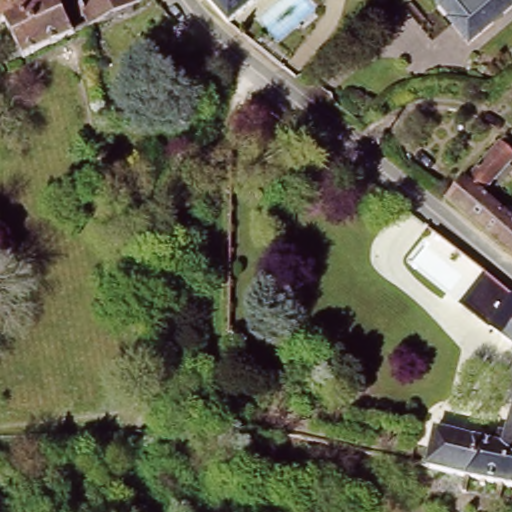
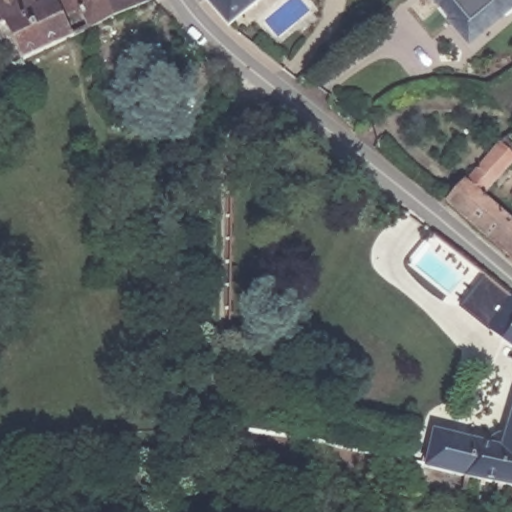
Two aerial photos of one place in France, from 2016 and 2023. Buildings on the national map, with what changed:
unchanged [(85,26),(80,16),(76,17),(71,16),(68,12),(61,15),(69,34),(21,56),(0,18),(0,0),(142,0),(85,26)]
unchanged [(227,30),(202,0),(263,0),(227,30)]
unchanged [(432,0),(512,0),(512,11),(469,48),(446,21),(448,19),(432,0)]
unchanged [(512,147),(512,156),(511,156),(512,157),(512,164),(480,199),(512,227),(512,263),(445,207),(505,141),(512,147)]
unchanged [(512,296),(512,338),(490,318),(510,293),(512,296)]
unchanged [(497,492),(496,495),(492,495),(495,486),(485,484),(483,488),(480,487),(481,483),(463,480),(460,492),(458,491),(460,479),(422,471),(431,437),(489,448),(490,438),(492,434),(490,431),(490,427),(492,426),(495,428),(496,432),(501,432),(508,435),(512,423),(512,489),(498,487),(497,492)]

